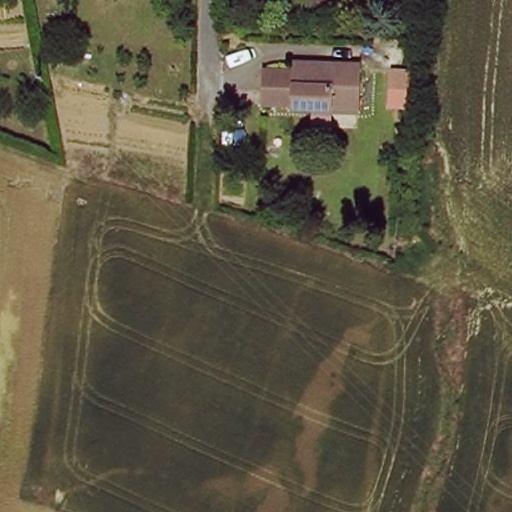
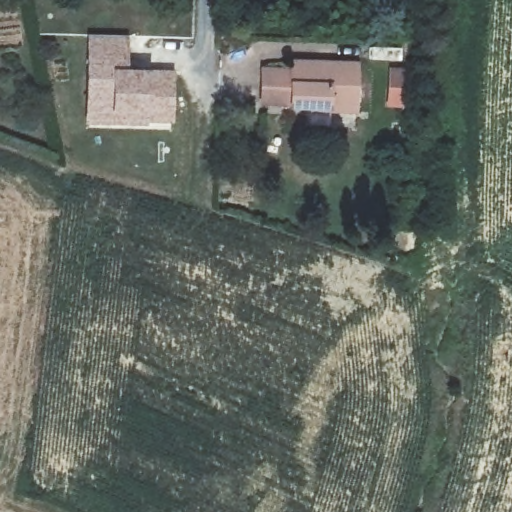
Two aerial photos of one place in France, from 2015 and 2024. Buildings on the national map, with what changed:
new [(149,123),(149,126),(87,125),(90,36),(131,35),(129,69),(152,70),(176,70),(175,124),(149,123)]
unchanged [(327,111),(289,110),(290,105),(261,105),(262,71),(291,73),(292,64),(356,66),(355,106),(355,111),(327,111)]

